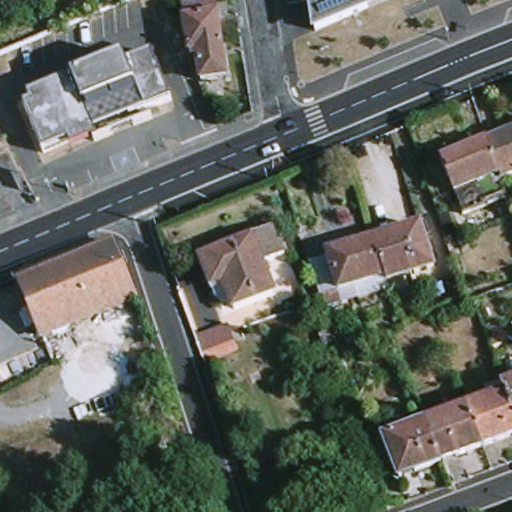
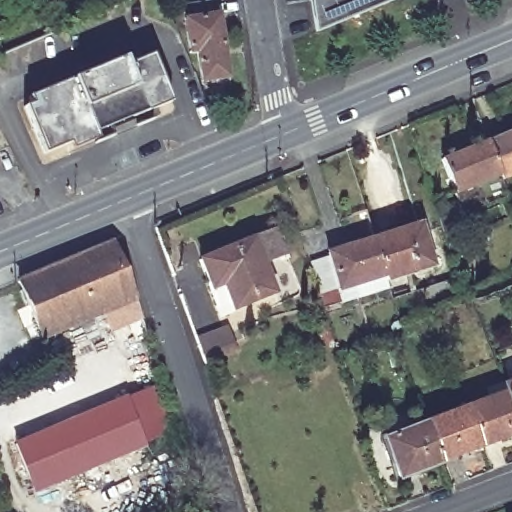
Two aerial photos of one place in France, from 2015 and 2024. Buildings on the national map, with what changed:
unchanged [(309,0),(400,0),(314,36),(309,0)]
unchanged [(225,81),(200,85),(195,56),(188,57),(181,10),(213,5),(225,81)]
unchanged [(94,140),(47,159),(27,111),(34,109),(31,102),(127,62),(130,69),(155,59),(175,106),(94,140)]
unchanged [(512,170),(498,176),(482,137),(512,124),(512,170)]
unchanged [(503,192),(459,210),(436,155),(482,137),(498,176),(503,192)]
unchanged [(417,224),(431,266),(385,281),(383,274),(372,239),(417,224)]
unchanged [(282,258),(261,267),(272,296),(231,313),(222,292),(211,296),(198,263),(251,242),(272,234),(282,258)]
unchanged [(109,239),(133,296),(41,335),(16,279),(109,239)]
unchanged [(372,239),(383,274),(337,289),(326,254),(372,239)]
unchanged [(220,350),(202,357),(193,333),(211,326),(220,350)]
unchanged [(502,387),(512,384),(512,414),(504,393),(502,388),(502,387)]
new [(128,393),(148,439),(37,488),(17,442),(128,393)]
unchanged [(512,414),(512,437),(479,450),(463,409),(504,393),(512,414)]
unchanged [(463,409),(479,450),(439,465),(435,453),(424,425),(463,409)]
unchanged [(424,425),(435,453),(439,465),(397,481),(381,441),(424,425)]

